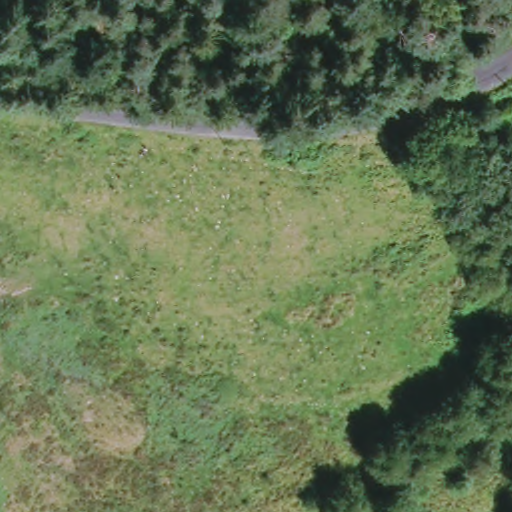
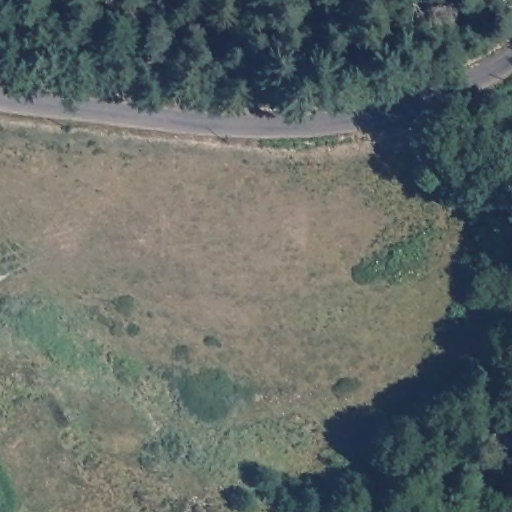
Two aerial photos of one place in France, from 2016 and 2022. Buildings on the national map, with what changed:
unchanged [(475,113),(458,126),(445,110),(453,107),(466,102),(475,113)]

